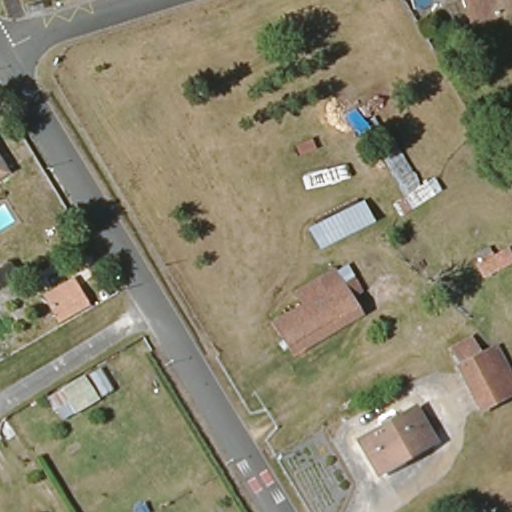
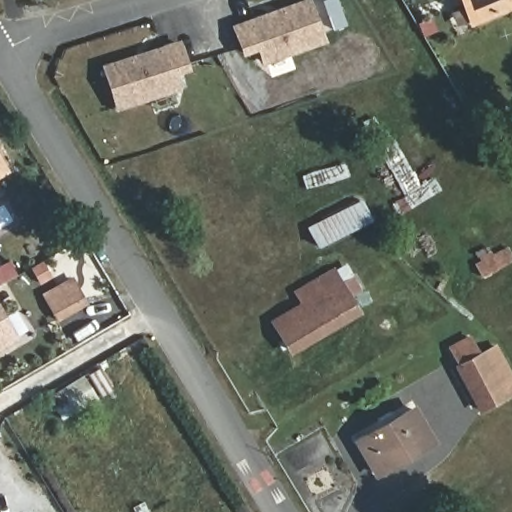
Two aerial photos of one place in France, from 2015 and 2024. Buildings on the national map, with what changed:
new [(258,51),(242,57),(231,25),(302,0),(310,0),(327,43),(263,65),(258,51)]
unchanged [(472,24),(463,0),(512,0),(512,7),(509,9),(472,24)]
new [(174,75),(180,91),(115,111),(101,65),(181,40),(192,70),(174,75)]
unchanged [(0,171),(0,162),(4,168),(0,171)]
unchanged [(362,202),(372,220),(317,246),(307,230),(362,202)]
unchanged [(302,304),(295,292),(332,270),(341,286),(350,280),(356,291),(347,297),(357,313),(290,354),(272,323),(302,304)]
unchanged [(40,293),(70,274),(87,303),(57,322),(40,293)]
new [(0,350),(0,305),(19,338),(0,350)]
unchanged [(490,404),(480,410),(446,349),(471,336),(480,354),(493,347),(512,381),(512,392),(490,404)]
unchanged [(105,362),(117,381),(98,391),(87,372),(105,362)]
unchanged [(84,374),(94,394),(73,407),(67,394),(55,401),(50,394),(84,374)]
unchanged [(413,410),(432,441),(374,474),(356,443),(413,410)]

